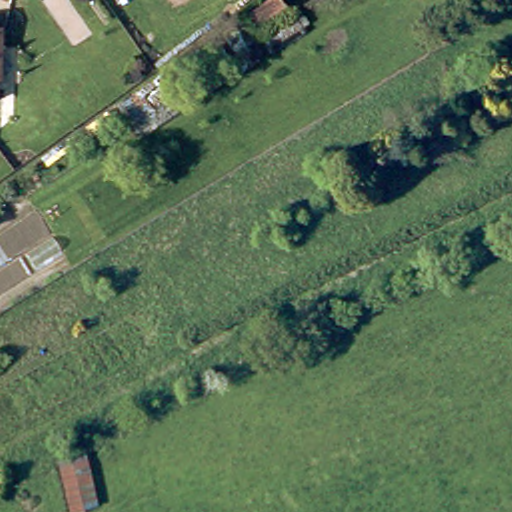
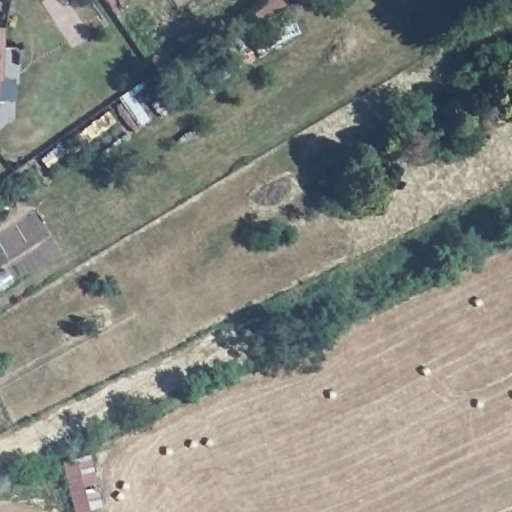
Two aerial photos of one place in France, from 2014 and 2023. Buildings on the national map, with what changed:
unchanged [(88,457),(99,506),(75,512),(63,464),(88,457)]

